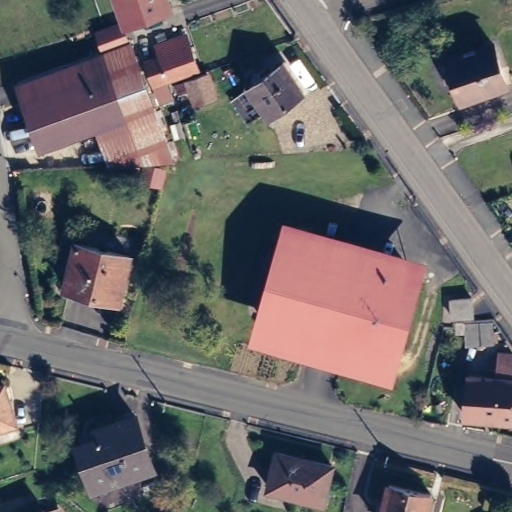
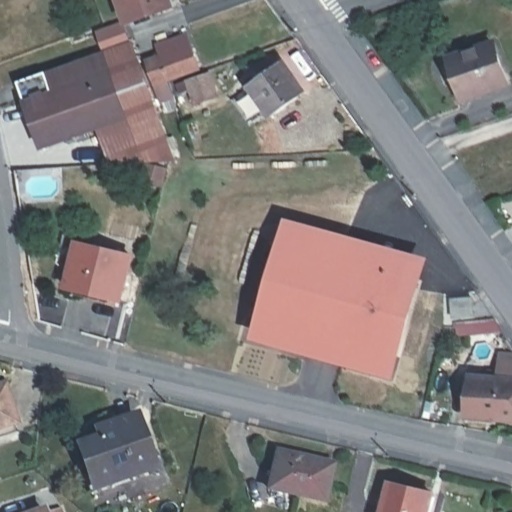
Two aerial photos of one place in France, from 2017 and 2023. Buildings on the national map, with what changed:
unchanged [(158,15),(123,26),(114,0),(152,0),(158,15)]
unchanged [(52,149),(47,150),(31,105),(22,81),(138,40),(182,161),(174,161),(116,165),(116,164),(84,166),(79,152),(56,160),(52,149)]
unchanged [(493,44),(507,84),(463,100),(456,78),(448,80),(443,67),(451,65),(449,59),(493,44)]
unchanged [(179,97),(167,101),(161,82),(154,62),(195,47),(202,67),(173,77),(175,83),(179,97)]
unchanged [(247,83),(253,79),(256,84),(277,69),(298,97),(265,121),(244,93),(250,89),(247,83)]
unchanged [(212,72),(220,95),(202,101),(192,105),(184,82),(194,79),(212,72)]
unchanged [(280,226),(420,261),(391,383),(247,346),(280,226)]
unchanged [(72,249),(125,261),(114,305),(62,292),(72,249)]
unchanged [(472,297),(474,316),(453,317),(451,299),(472,297)]
unchanged [(492,320),(494,342),(466,345),(465,322),(492,320)]
unchanged [(482,375),(491,376),(492,363),(512,365),(512,427),(460,422),(464,380),(482,381),(482,375)]
unchanged [(11,428),(0,431),(0,392),(11,428)]
unchanged [(102,442),(99,434),(135,421),(153,472),(96,492),(81,450),(102,442)]
unchanged [(328,470),(319,506),(264,493),(273,456),(328,470)]
unchanged [(422,512),(377,512),(385,483),(427,493),(422,512)]
unchanged [(53,512),(48,512),(52,510),(53,512)]

